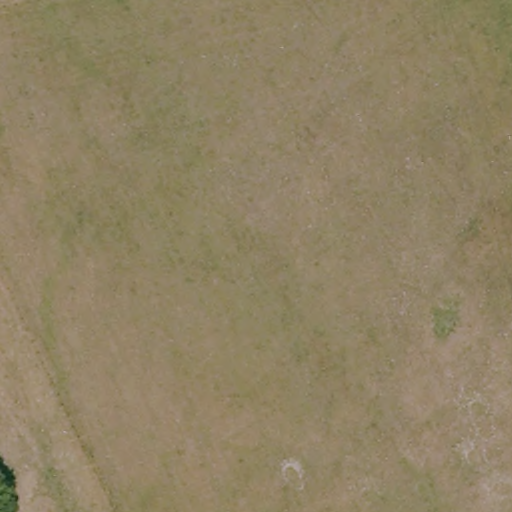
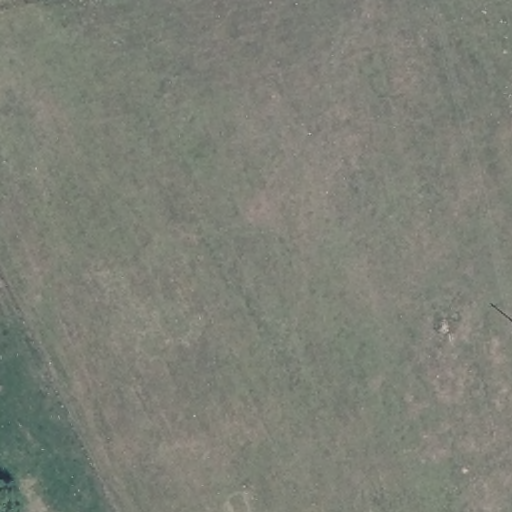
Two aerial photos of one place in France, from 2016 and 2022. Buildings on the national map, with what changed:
[]

